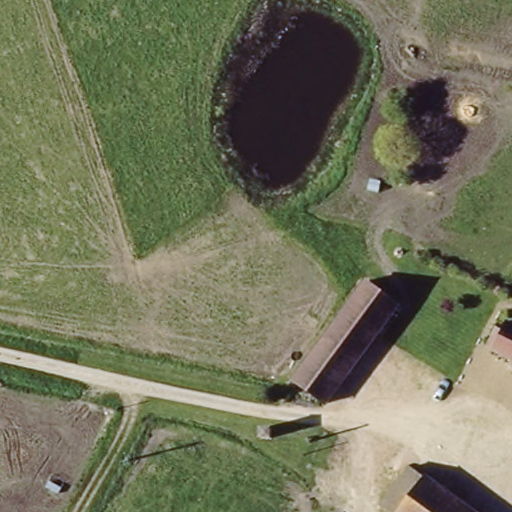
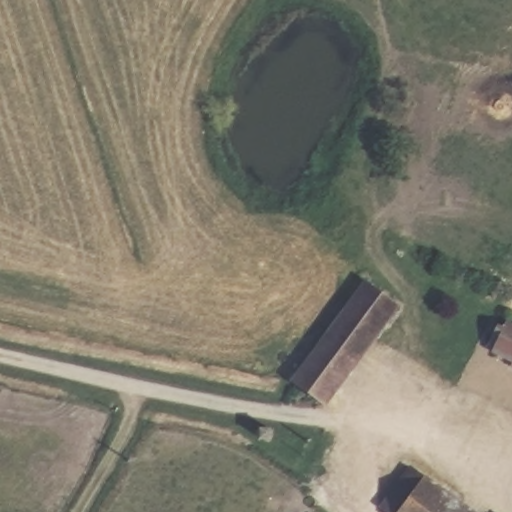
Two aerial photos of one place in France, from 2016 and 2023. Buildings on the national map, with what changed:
unchanged [(410,300),(332,403),(296,377),(377,273),(410,300)]
unchanged [(512,315),(512,360),(492,351),(511,315),(512,315)]
unchanged [(388,512),(380,506),(414,457),(486,512),(388,512)]

